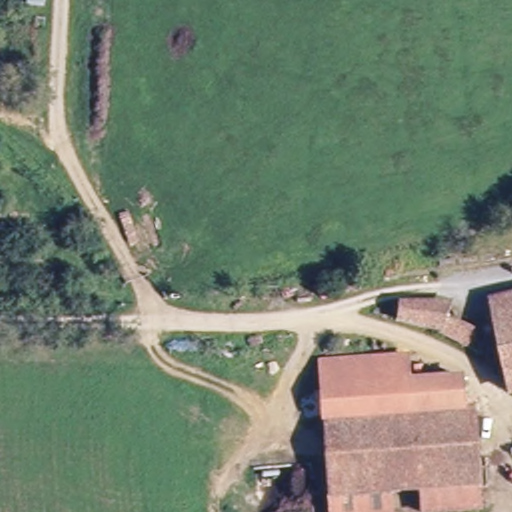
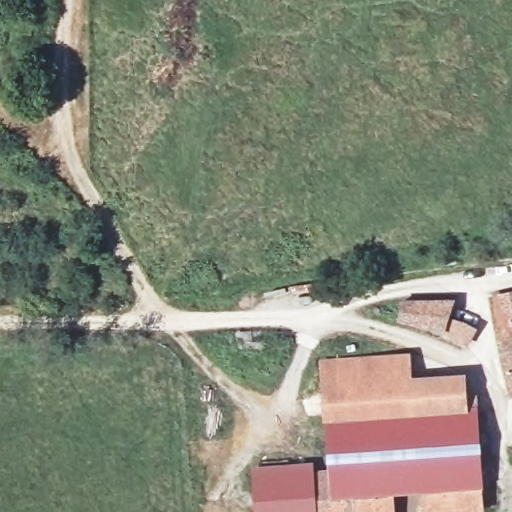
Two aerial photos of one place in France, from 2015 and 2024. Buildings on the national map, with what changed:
unchanged [(512,385),(492,302),(512,297),(512,385)]
unchanged [(450,304),(446,329),(404,323),(406,303),(450,304)]
unchanged [(449,321),(481,326),(476,346),(446,338),(449,321)]
unchanged [(322,366),(410,360),(410,378),(405,379),(403,413),(323,419),(322,366)]
unchanged [(468,411),(479,409),(483,512),(421,512),(420,497),(395,498),(396,512),(329,512),(323,419),(403,413),(405,379),(410,378),(465,374),(468,411)]
new [(326,464),(329,512),(257,512),(254,469),(326,464)]

